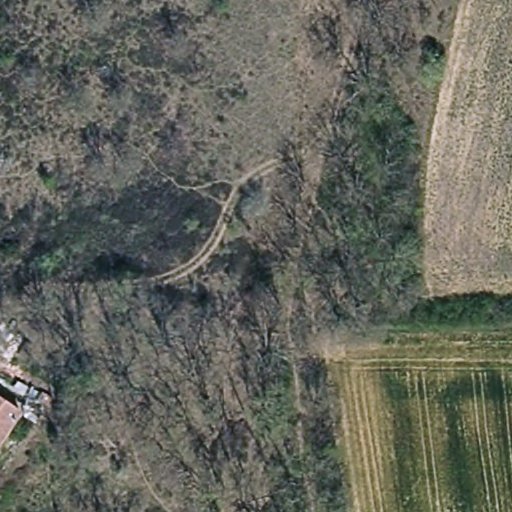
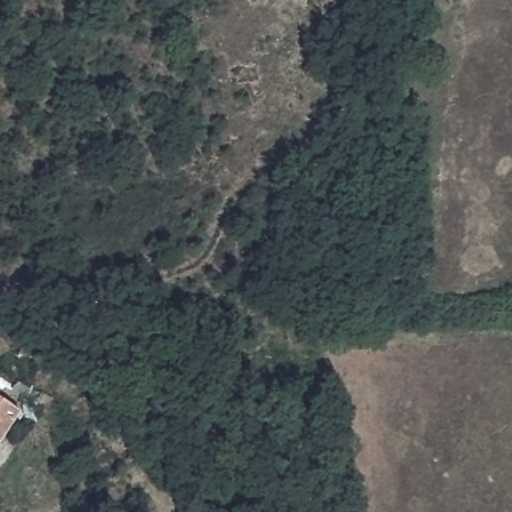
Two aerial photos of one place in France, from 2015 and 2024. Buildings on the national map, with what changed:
unchanged [(0,393),(24,410),(0,444),(0,393)]

